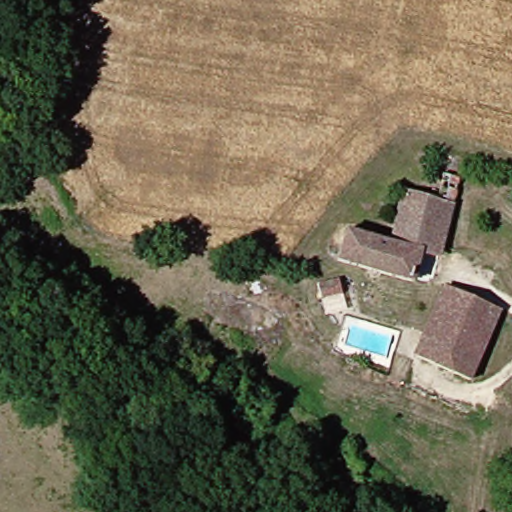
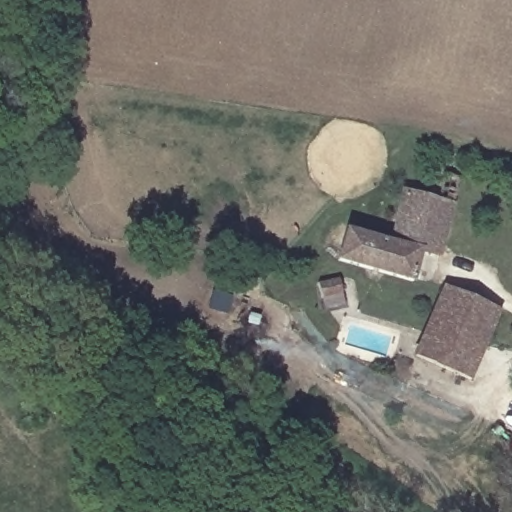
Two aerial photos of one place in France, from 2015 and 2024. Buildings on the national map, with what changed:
unchanged [(391,244),(399,196),(433,201),(438,172),(458,173),(442,258),(416,252),(411,281),(337,266),(342,238),(391,244)]
unchanged [(412,324),(418,305),(458,292),(505,309),(479,379),(420,357),(403,351),(412,324)]
unchanged [(329,298),(355,294),(358,310),(333,314),(329,298)]

